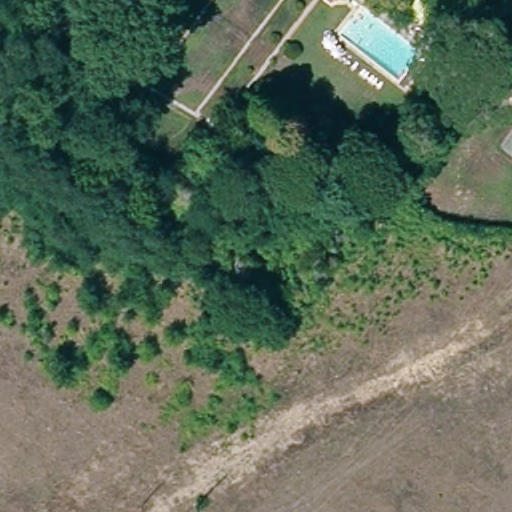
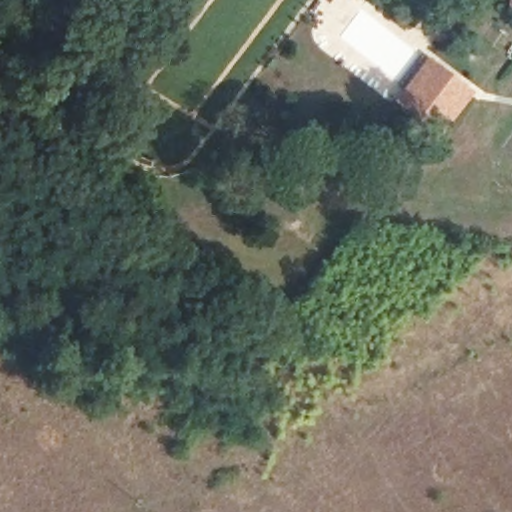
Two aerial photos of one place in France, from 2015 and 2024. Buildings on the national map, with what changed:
new [(429,54),(477,90),(438,139),(392,100),(429,54)]
unchanged [(302,172),(338,193),(330,206),(297,184),(302,172)]
demolished [(287,229),(293,217),(317,232),(310,242),(287,229)]

